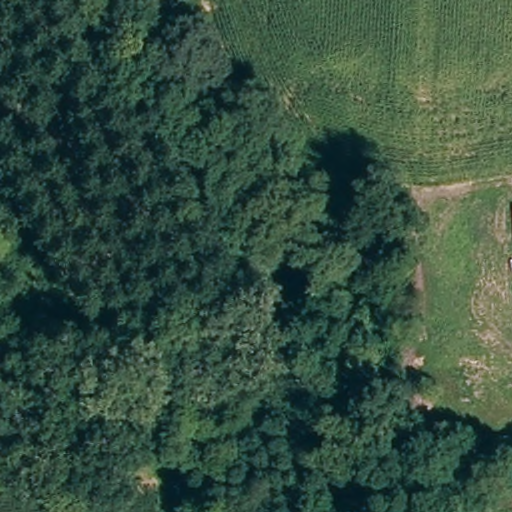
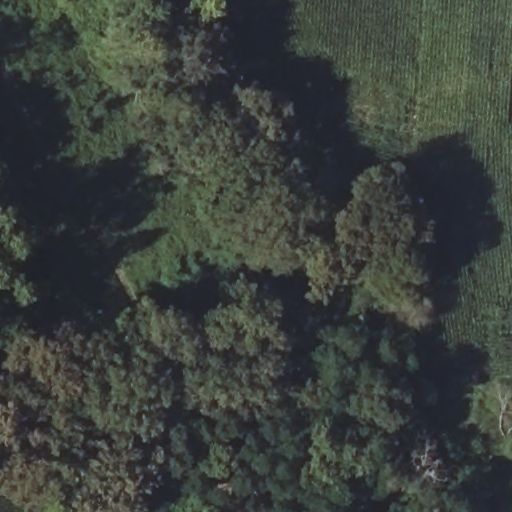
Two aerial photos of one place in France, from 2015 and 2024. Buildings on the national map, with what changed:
[]

